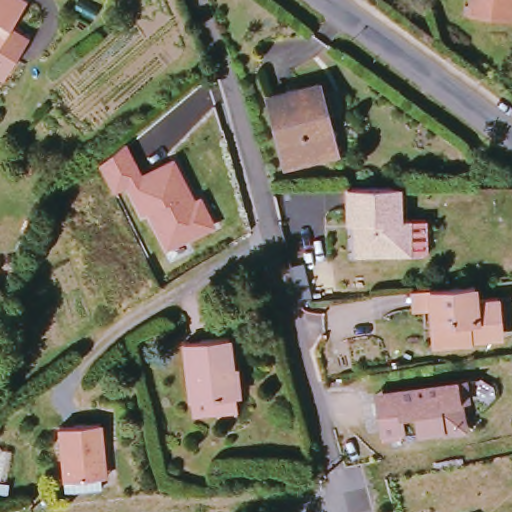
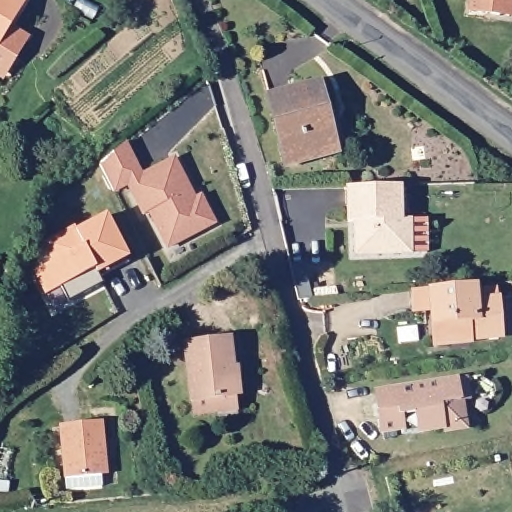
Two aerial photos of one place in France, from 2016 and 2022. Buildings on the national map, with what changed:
unchanged [(0,71),(0,0),(27,0),(10,22),(29,35),(12,59),(7,66),(2,73),(0,71)]
unchanged [(470,0),(512,0),(512,21),(468,15),(470,0)]
unchanged [(267,97),(318,82),(329,118),(325,119),(335,153),(290,168),(267,97)]
unchanged [(151,215),(146,217),(130,186),(116,193),(100,166),(125,143),(142,177),(175,161),(193,201),(201,197),(215,225),(169,249),(151,215)]
unchanged [(403,221),(429,219),(431,253),(360,258),(359,240),(360,238),(360,237),(360,236),(360,235),(360,233),(360,232),(360,231),(359,230),(358,229),(357,228),(356,227),(355,227),(353,226),(352,226),(350,226),(348,192),(401,188),(403,221)]
new [(131,257),(95,276),(100,283),(70,298),(61,282),(47,289),(35,267),(55,258),(45,240),(75,224),(77,228),(107,212),(131,257)]
unchanged [(455,346),(440,347),(437,313),(419,314),(417,292),(436,291),(481,287),(482,302),(505,301),(506,317),(502,320),(505,340),(475,342),(475,345),(455,346)]
unchanged [(195,424),(193,407),(187,328),(235,325),(240,403),(240,422),(195,424)]
unchanged [(387,433),(380,403),(378,393),(410,388),(469,379),(472,397),(466,399),(467,409),(460,411),(463,425),(407,434),(408,437),(390,440),(388,433),(387,433)]
unchanged [(103,475),(100,475),(100,486),(65,488),(61,422),(105,420),(106,445),(108,475),(103,475)]

